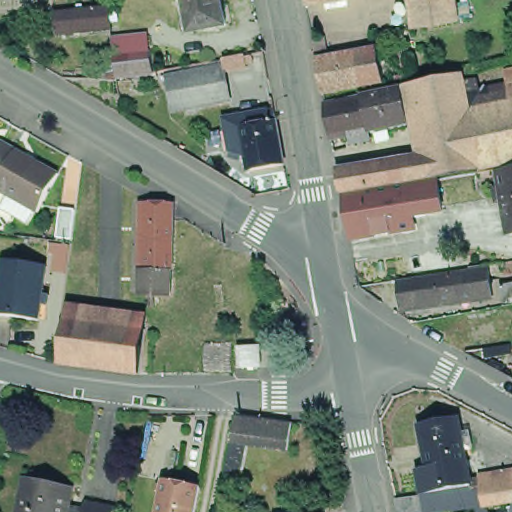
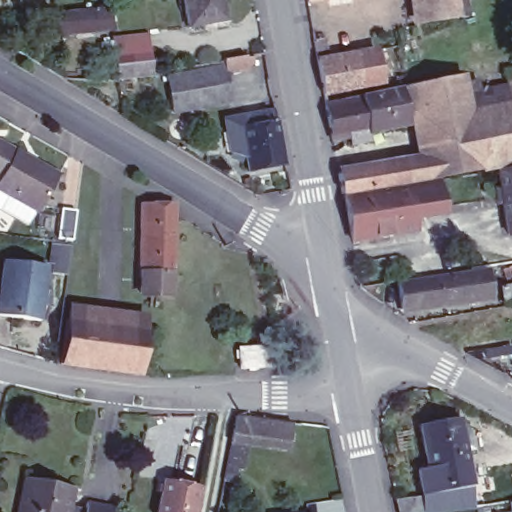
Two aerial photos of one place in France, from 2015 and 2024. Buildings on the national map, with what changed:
unchanged [(215,28),(195,32),(188,0),(226,0),(229,15),(231,25),(215,28)]
unchanged [(307,2),(306,0),(316,0),(307,2)]
unchanged [(415,0),(456,0),(459,16),(419,22),(415,0)]
unchanged [(107,7),(110,30),(57,37),(53,15),(107,7)]
unchanged [(116,72),(114,55),(112,39),(148,34),(150,50),(153,75),(117,79),(117,82),(91,81),(92,71),(116,72)]
unchanged [(173,113),(167,76),(190,72),(224,66),(223,60),(245,56),(245,57),(252,57),(254,64),(247,65),(247,68),(225,72),(227,80),(225,80),(230,102),(196,109),(173,113)]
unchanged [(338,67),(357,62),(377,59),(382,89),(364,92),(345,95),(322,99),(317,71),(338,67)]
unchanged [(475,87),(479,103),(509,97),(505,81),(512,80),(512,168),(481,174),(470,121),(463,89),(475,87)]
unchanged [(419,89),(461,81),(463,89),(470,121),(427,131),(419,89)]
unchanged [(409,130),(382,135),(375,100),(375,97),(400,92),(409,130)]
unchanged [(350,149),(349,142),(331,146),(325,110),(375,100),(382,135),(369,138),(370,145),(350,149)]
unchanged [(231,157),(232,153),(230,152),(224,120),(247,116),(269,112),(274,111),(277,122),(284,165),(248,172),(245,157),(241,156),(240,160),(231,157)]
unchanged [(365,176),(390,172),(435,165),(427,131),(470,121),(481,174),(438,183),(422,186),(394,191),(368,195),(342,199),(337,181),(365,176)]
unchanged [(38,217),(0,196),(0,147),(16,156),(40,169),(60,180),(44,207),(38,217)]
unchanged [(512,174),(512,239),(508,240),(503,209),(496,210),(493,194),(500,192),(497,177),(512,174)]
unchanged [(395,194),(451,183),(457,219),(400,229),(395,196),(395,194)]
unchanged [(400,229),(401,230),(350,238),(344,204),(395,196),(400,229)]
unchanged [(140,292),(140,270),(142,204),(154,204),(172,204),(172,217),(171,270),(170,293),(140,292)]
unchanged [(380,267),(405,263),(419,261),(422,280),(409,282),(385,286),(380,267)]
unchanged [(39,323),(0,318),(0,285),(3,263),(46,269),(39,323)]
unchanged [(455,305),(447,306),(425,308),(422,284),(442,282),(446,281),(474,277),(488,275),(492,300),(477,301),(462,303),(455,305)]
unchanged [(502,287),(512,285),(512,303),(505,304),(502,287)]
unchanged [(62,347),(67,320),(145,328),(139,373),(65,363),(60,362),(62,347)]
unchanged [(239,351),(239,347),(260,347),(260,349),(260,367),(240,367),(239,351)]
unchanged [(301,350),(309,357),(297,369),(290,362),(301,350)]
unchanged [(235,469),(232,483),(222,482),(230,442),(235,415),(291,423),(287,450),(249,445),(243,471),(235,469)]
unchanged [(429,474),(421,430),(460,422),(465,443),(472,442),(474,450),(472,451),(474,458),(467,460),(469,467),(473,489),(472,490),(470,490),(472,495),(475,496),(485,495),(482,479),(512,475),(512,504),(499,506),(487,508),(487,509),(483,510),(473,511),(465,512),(464,511),(457,512),(400,512),(399,505),(424,501),(422,488),(420,476),(429,474)]
unchanged [(47,483),(41,512),(17,512),(25,479),(47,483)]
unchanged [(204,490),(199,512),(162,512),(167,482),(182,486),(204,490)]
unchanged [(41,512),(47,483),(73,489),(69,508),(85,512),(87,502),(115,507),(114,512),(41,512)]
unchanged [(312,508),(313,512),(283,512),(282,512),(312,508)]

